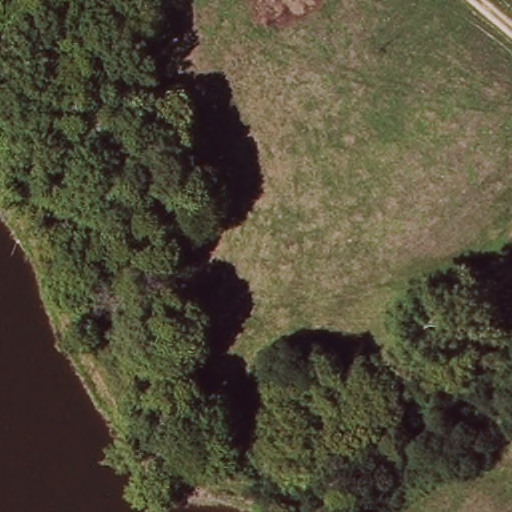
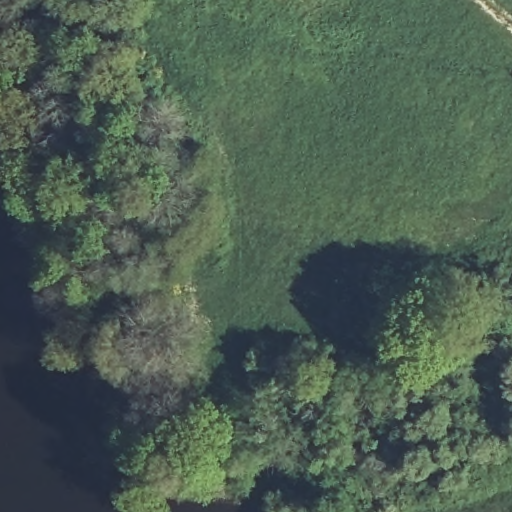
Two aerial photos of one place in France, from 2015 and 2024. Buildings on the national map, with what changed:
[]

